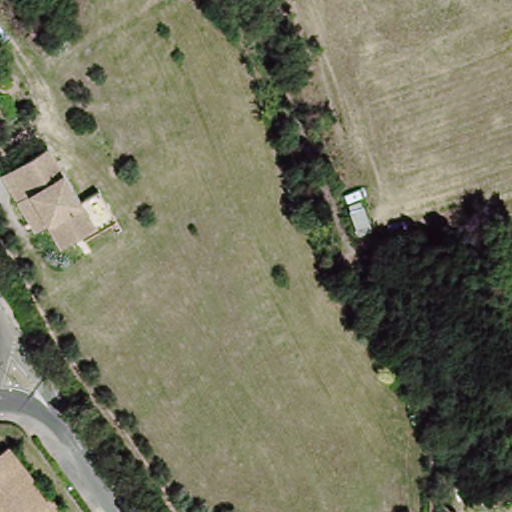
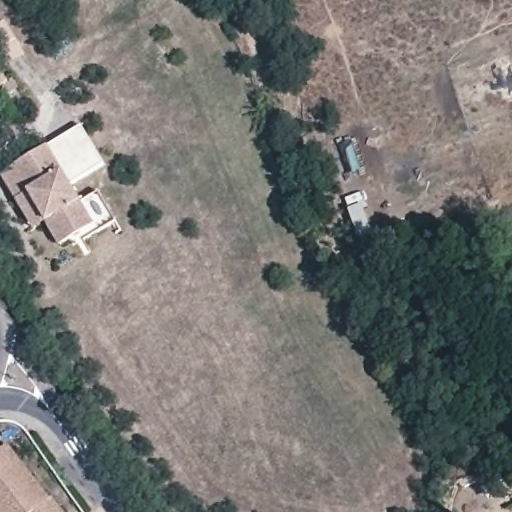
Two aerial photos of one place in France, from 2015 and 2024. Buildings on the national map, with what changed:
unchanged [(12,82),(3,87),(0,82),(0,77),(7,73),(12,82)]
new [(75,185),(51,149),(80,126),(103,164),(75,185)]
unchanged [(26,204),(7,176),(51,149),(101,224),(69,244),(54,220),(42,228),(26,204)]
unchanged [(68,512),(32,512),(32,511),(31,512),(0,512),(0,449),(9,442),(68,512)]

